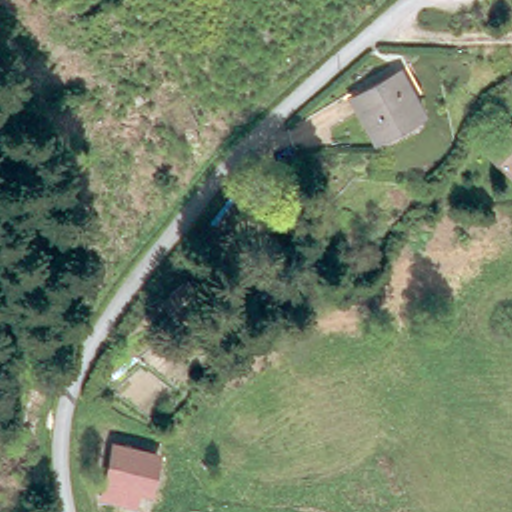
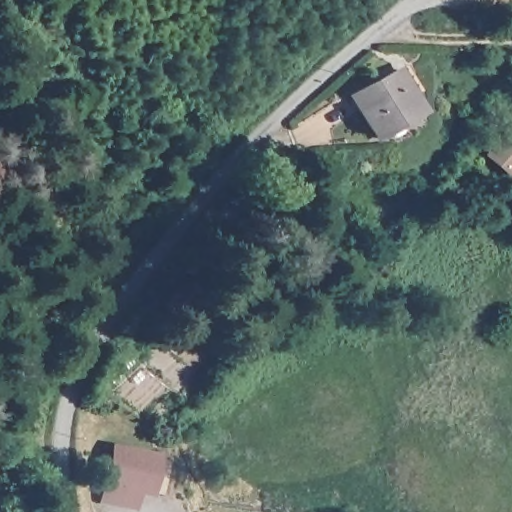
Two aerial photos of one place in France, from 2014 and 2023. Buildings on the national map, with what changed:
unchanged [(400,68),(423,117),(371,141),(348,94),(400,68)]
unchanged [(503,123),(512,130),(512,159),(490,140),(503,123)]
unchanged [(24,436),(30,407),(50,410),(49,419),(44,440),(24,436)]
unchanged [(162,452),(152,499),(139,497),(136,505),(102,499),(112,442),(162,452)]

